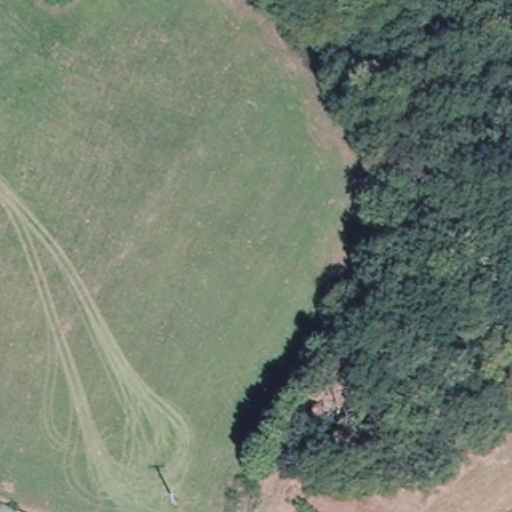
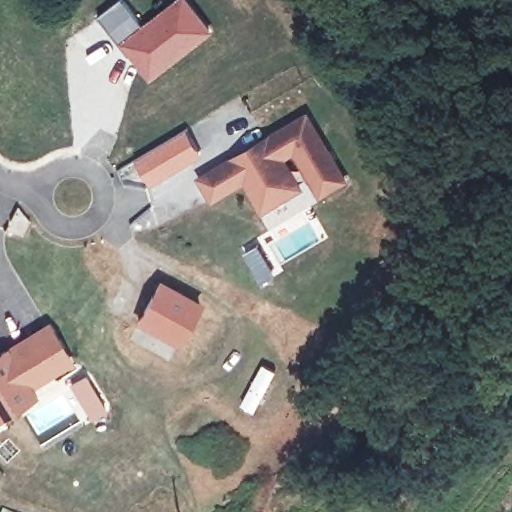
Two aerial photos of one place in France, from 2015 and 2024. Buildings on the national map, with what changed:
new [(118,0),(124,0),(143,24),(118,42),(98,16),(118,0)]
new [(143,24),(174,0),(190,0),(214,32),(149,82),(118,42),(143,24)]
new [(268,138),(288,126),(307,116),(309,121),(343,180),(319,194),(294,150),(282,157),(298,187),(262,208),(245,179),(213,197),(202,177),(234,158),(268,138)]
new [(186,129),(202,155),(149,187),(134,160),(186,129)]
new [(247,242),(262,266),(257,268),(260,273),(252,278),(234,249),(247,242)]
new [(151,277),(189,299),(168,336),(130,315),(151,277)]
new [(0,410),(0,351),(46,323),(68,358),(51,368),(29,382),(31,385),(34,390),(0,410)]

